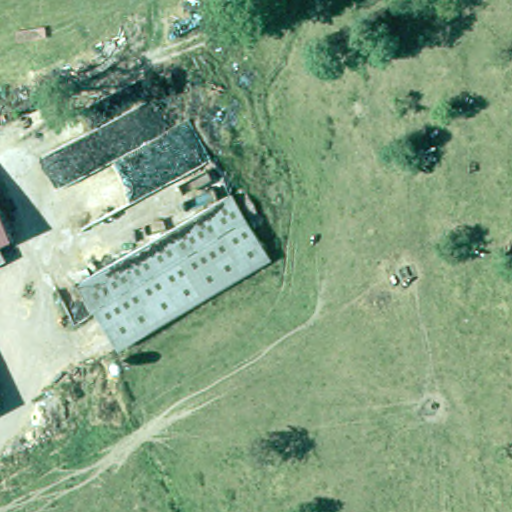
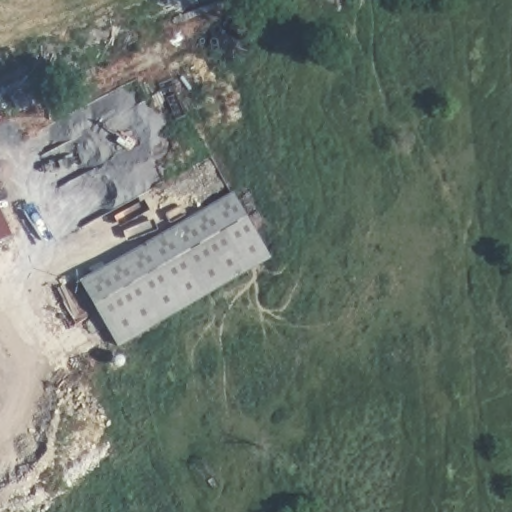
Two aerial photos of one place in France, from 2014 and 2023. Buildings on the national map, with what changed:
unchanged [(80,279),(233,191),(261,240),(108,328),(80,279)]
unchanged [(0,244),(0,205),(15,237),(0,244)]
unchanged [(108,328),(261,240),(271,257),(118,345),(108,328)]

